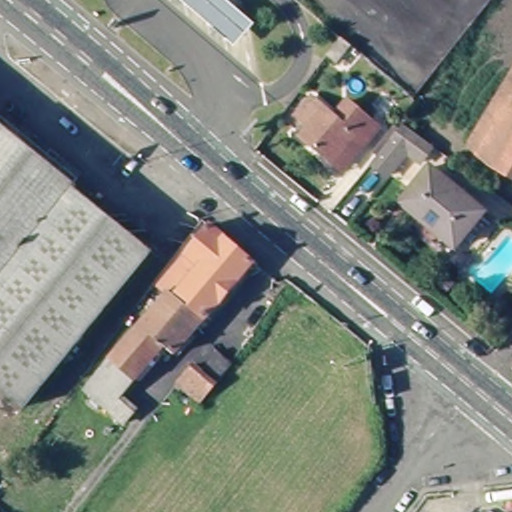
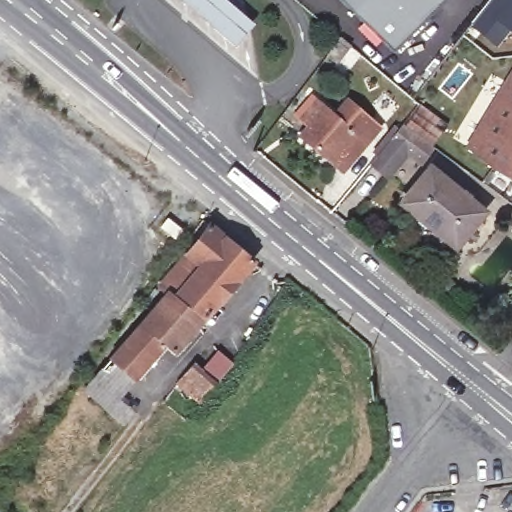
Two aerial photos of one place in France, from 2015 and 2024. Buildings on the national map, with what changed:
unchanged [(258,19),(239,41),(224,29),(195,5),(190,0),(236,0),(242,5),(258,19)]
new [(342,0),(446,0),(395,52),(342,0)]
new [(512,0),(512,33),(509,31),(495,47),(469,25),(489,0),(512,0)]
unchanged [(335,65),(326,56),(340,39),(350,48),(335,65)]
unchanged [(470,146),(481,126),(510,78),(512,76),(512,177),(495,165),(475,150),(470,146)]
unchanged [(346,167),(337,160),(305,132),(313,122),(300,112),(316,93),(338,112),(350,97),(372,116),(382,124),(346,167)]
demolished [(0,380),(0,115),(79,177),(75,181),(154,244),(132,271),(30,403),(0,380)]
unchanged [(375,164),(390,144),(393,140),(397,135),(403,125),(435,147),(422,163),(409,152),(390,176),(375,164)]
unchanged [(486,207),(448,256),(420,235),(430,222),(427,220),(428,215),(406,196),(432,163),(486,207)]
unchanged [(205,321),(165,291),(160,286),(209,225),(215,230),(252,262),(205,321)]
unchanged [(83,390),(165,291),(205,321),(199,327),(174,355),(164,347),(120,397),(135,410),(124,424),(83,390)]
unchanged [(186,385),(184,388),(179,385),(199,361),(205,367),(224,348),(237,359),(205,400),(194,390),(186,385)]

